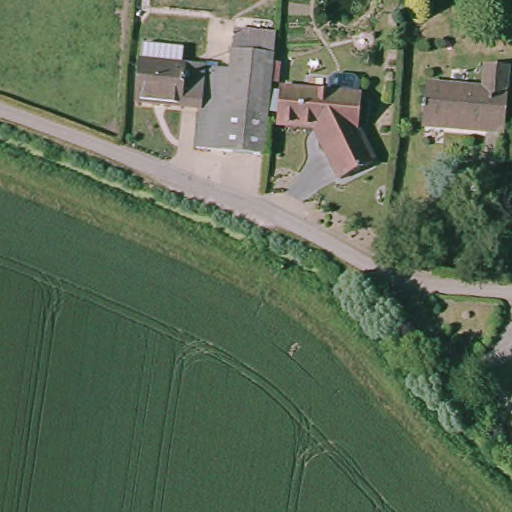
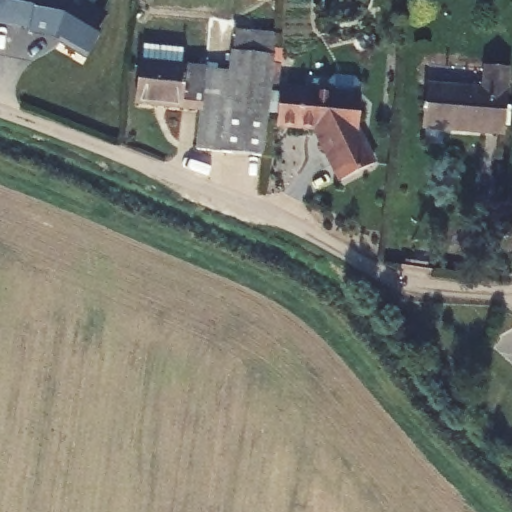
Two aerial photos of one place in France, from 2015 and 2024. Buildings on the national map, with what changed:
new [(111,18),(101,36),(104,38),(91,58),(63,41),(65,38),(60,36),(35,30),(36,27),(0,20),(0,17),(4,0),(82,0),(111,18)]
unchanged [(267,2),(250,0),(267,0),(267,2)]
unchanged [(235,69),(240,30),(275,33),(278,34),(272,75),(261,158),(211,154),(200,153),(205,112),(140,103),(145,61),(208,67),(220,68),(235,69)]
unchanged [(487,68),(510,69),(505,135),(426,131),(429,89),(484,92),(487,68)]
unchanged [(352,127),(375,163),(343,182),(312,129),(276,123),(280,89),(355,94),(352,127)]

